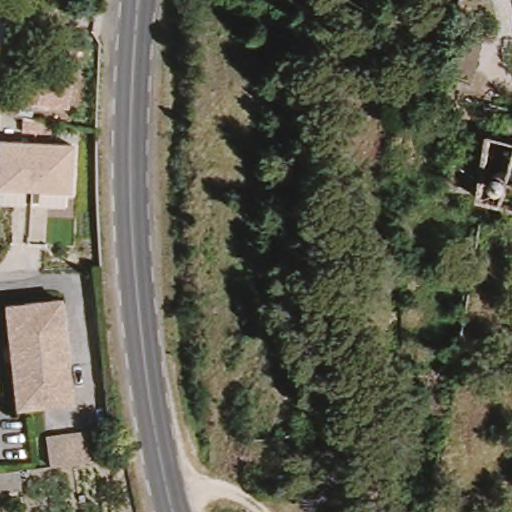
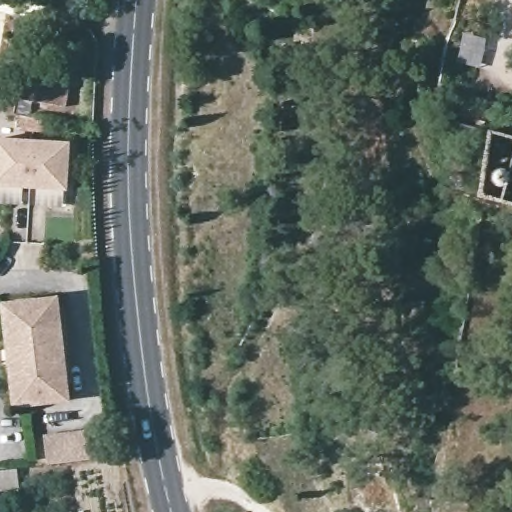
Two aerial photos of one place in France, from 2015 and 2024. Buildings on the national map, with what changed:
unchanged [(285,34),(272,28),(279,12),(291,18),(285,34)]
unchanged [(1,93),(18,96),(15,115),(0,112),(0,95),(1,93)]
unchanged [(64,144),(60,193),(0,192),(0,141),(64,144)]
unchanged [(64,400),(10,406),(0,317),(0,304),(52,298),(64,400)]
unchanged [(91,458),(43,464),(40,436),(88,431),(91,458)]
unchanged [(13,469),(15,491),(0,493),(0,470),(13,469)]

